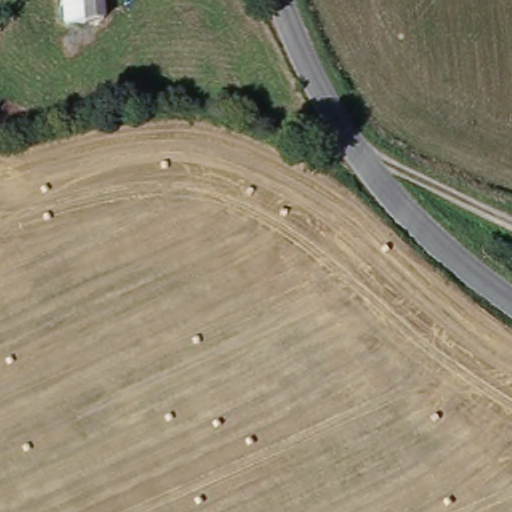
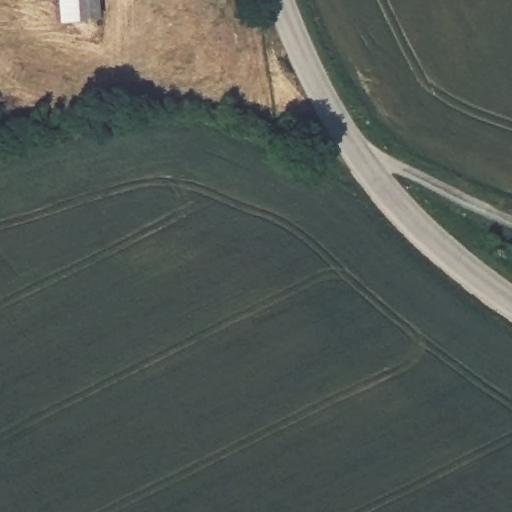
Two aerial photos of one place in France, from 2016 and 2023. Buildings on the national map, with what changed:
unchanged [(84,26),(81,0),(98,0),(101,26),(84,26)]

